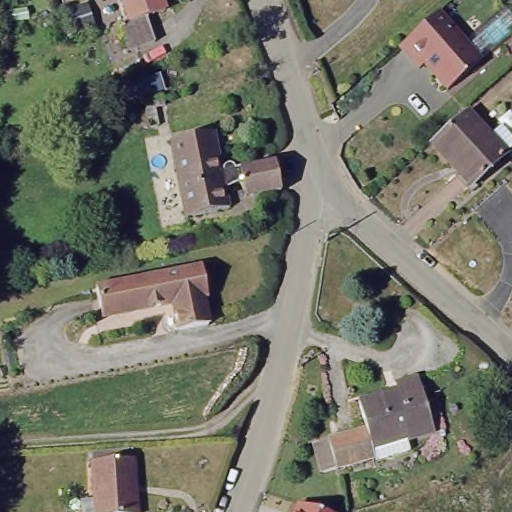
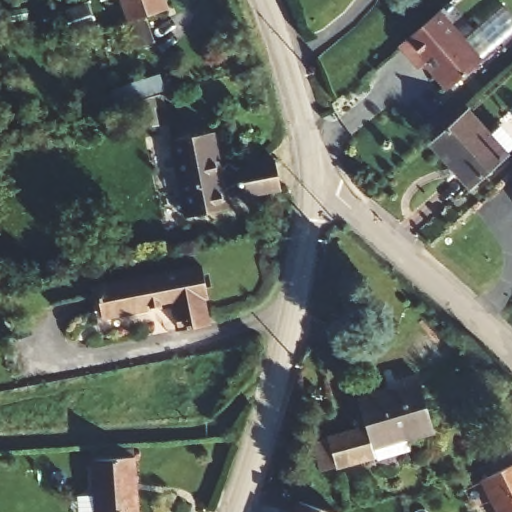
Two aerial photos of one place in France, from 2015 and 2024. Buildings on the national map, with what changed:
unchanged [(144,12),(152,36),(126,45),(117,20),(129,15),(124,0),(162,0),(164,5),(144,12)]
unchanged [(427,14),(470,61),(437,90),(421,73),(422,72),(415,63),(407,70),(389,48),(427,14)]
unchanged [(485,137),(495,126),(512,143),(501,153),(467,186),(425,143),(459,111),(485,137)]
unchanged [(216,127),(222,167),(226,166),(227,163),(229,160),(232,158),(236,158),(239,160),(242,164),(279,156),(284,186),(228,196),(230,205),(187,212),(173,137),(216,127)]
unchanged [(509,192),(512,189),(512,197),(509,192)]
unchanged [(202,267),(208,297),(195,300),(199,324),(177,329),(172,306),(105,322),(98,291),(202,267)]
unchanged [(395,398),(393,391),(420,388),(434,445),(390,452),(389,448),(370,451),(317,459),(311,439),(364,432),(357,404),(395,398)]
unchanged [(137,452),(143,512),(100,512),(94,456),(137,452)]
new [(480,481),(512,466),(512,512),(496,512),(480,481)]
unchanged [(327,512),(292,512),(296,502),(327,512)]

